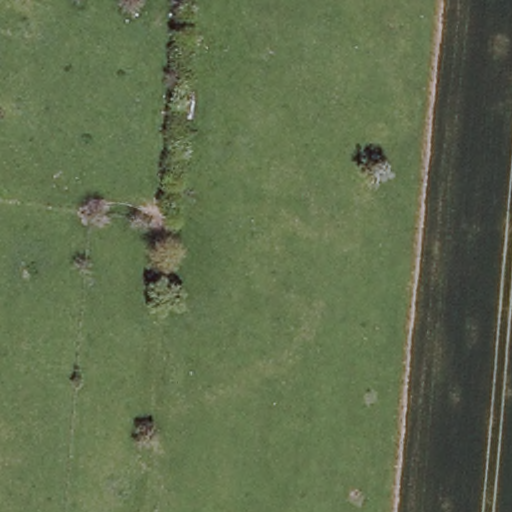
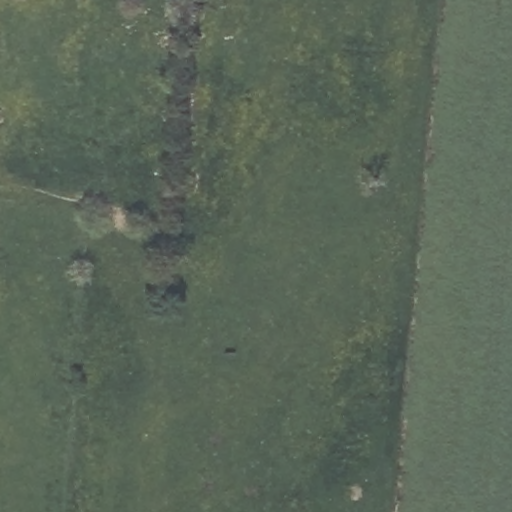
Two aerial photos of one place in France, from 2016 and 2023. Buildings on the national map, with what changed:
[]

